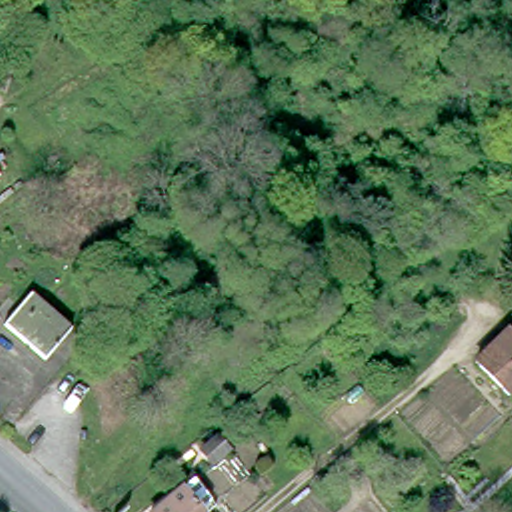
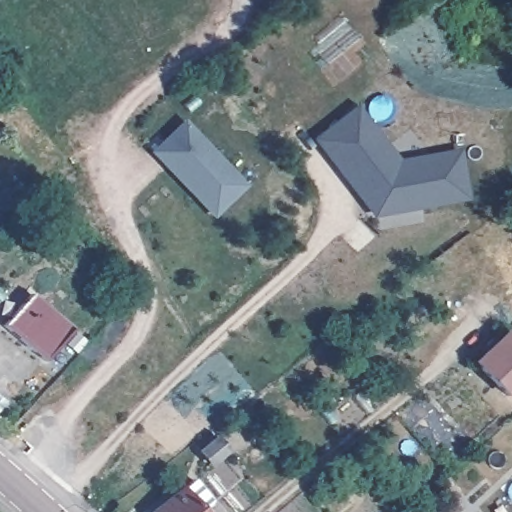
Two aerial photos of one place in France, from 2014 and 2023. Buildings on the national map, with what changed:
new [(399,159),(462,148),(469,202),(375,217),(313,140),(357,105),(399,159)]
new [(250,186),(215,219),(150,152),(185,119),(250,186)]
unchanged [(72,328),(45,361),(5,325),(31,293),(72,328)]
unchanged [(512,330),(512,384),(485,357),(512,330)]
unchanged [(225,452),(213,461),(204,450),(216,441),(225,452)]
unchanged [(205,506),(198,512),(144,512),(183,480),(205,506)]

